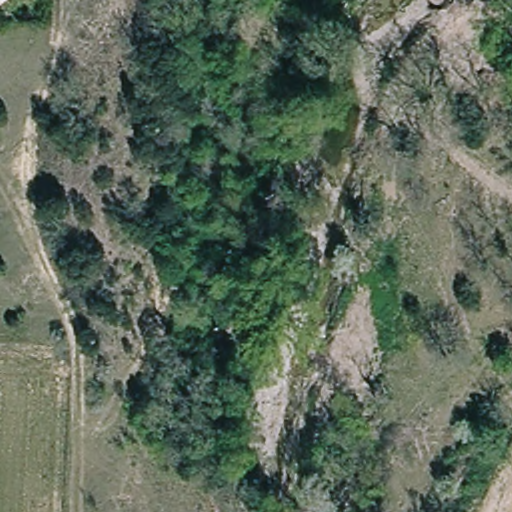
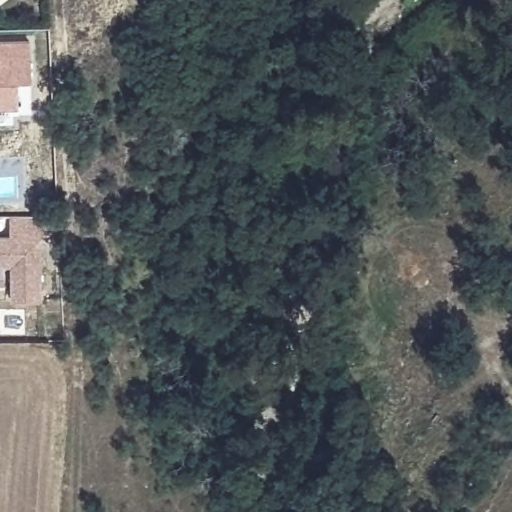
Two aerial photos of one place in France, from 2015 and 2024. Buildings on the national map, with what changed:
new [(31,82),(17,82),(17,108),(0,109),(0,41),(28,40),(31,82)]
new [(11,219),(41,218),(42,300),(13,301),(13,266),(0,267),(0,239),(11,239),(11,219)]

